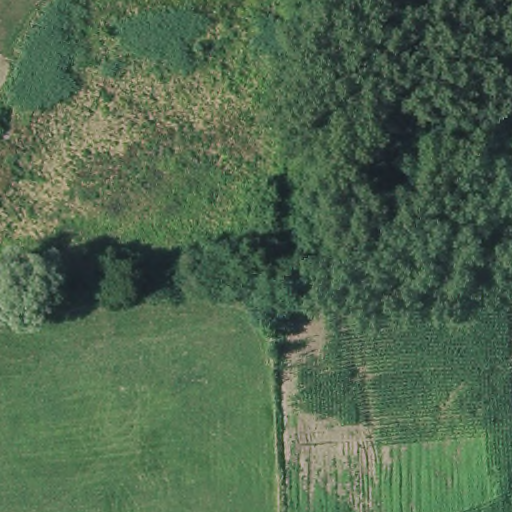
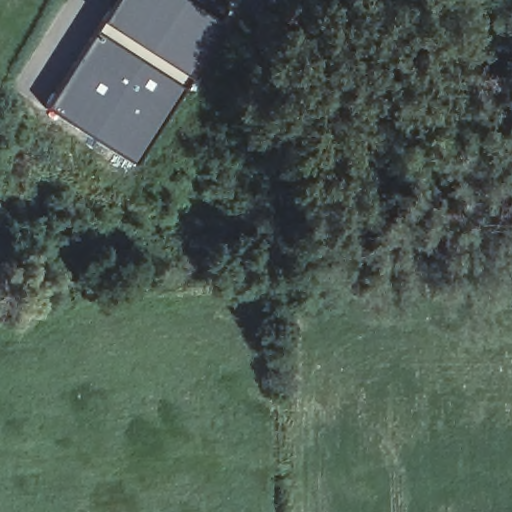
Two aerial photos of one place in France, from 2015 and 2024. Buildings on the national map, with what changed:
new [(234,14),(134,166),(53,108),(121,0),(215,0),(234,14)]

